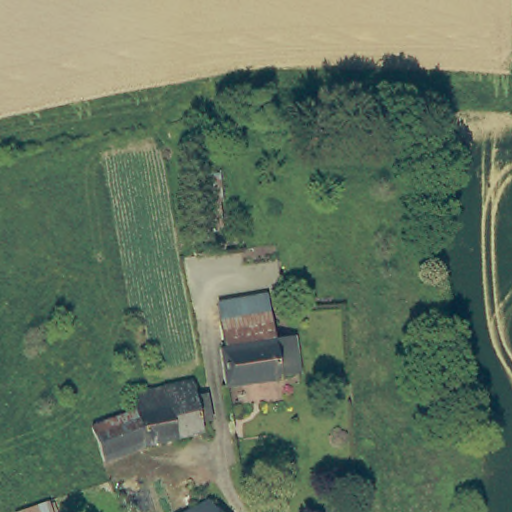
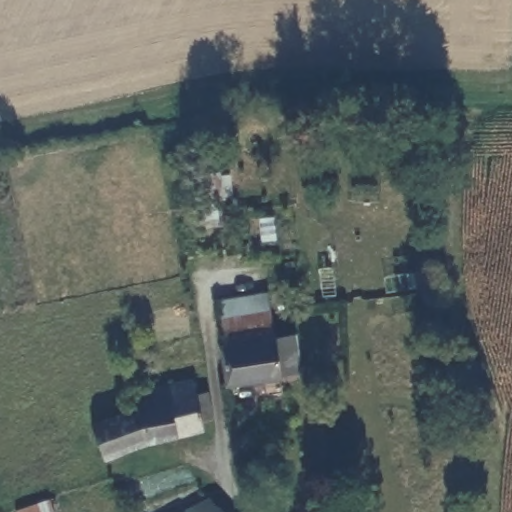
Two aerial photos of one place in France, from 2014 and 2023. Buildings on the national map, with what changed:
unchanged [(220,321),(218,301),(269,294),(271,314),(220,321)]
unchanged [(274,339),(224,346),(220,321),(271,314),(274,339)]
unchanged [(294,336),(298,372),(279,374),(280,377),(226,386),(219,347),(224,346),(274,339),(294,336)]
unchanged [(197,394),(207,394),(211,420),(203,421),(202,429),(153,440),(104,459),(89,427),(135,410),(131,393),(153,388),(192,379),(197,394)]
unchanged [(222,512),(183,512),(208,497),(222,512)]

